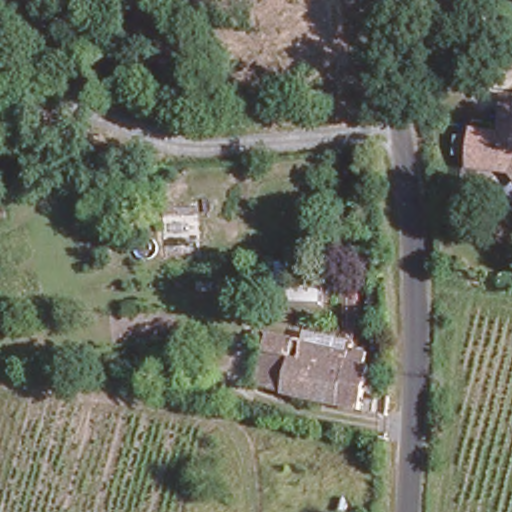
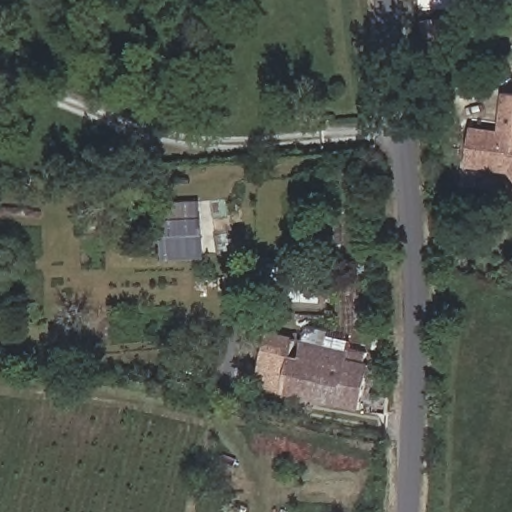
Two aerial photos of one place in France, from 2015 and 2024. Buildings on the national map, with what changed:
unchanged [(456,48),(434,49),(433,27),(455,26),(456,48)]
unchanged [(506,175),(465,164),(471,124),(498,127),(505,91),(512,93),(512,182),(506,175)]
new [(201,201),(203,260),(162,261),(161,203),(201,201)]
unchanged [(251,376),(252,370),(259,370),(261,358),(256,356),(259,347),(265,348),(270,328),(352,346),(350,357),(371,362),(361,406),(255,381),(256,378),(251,376)]

